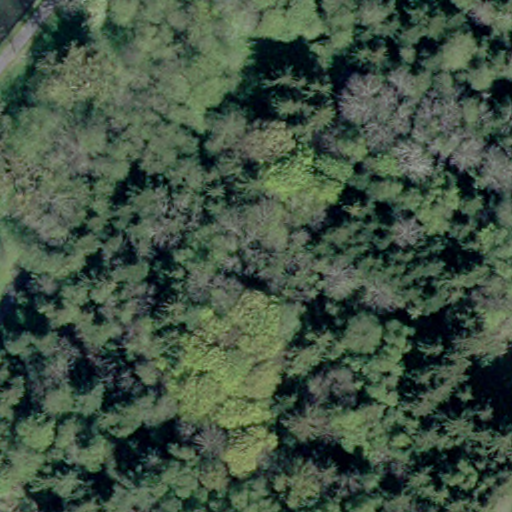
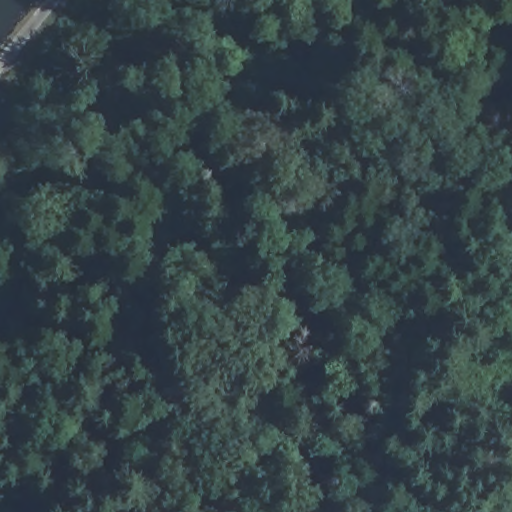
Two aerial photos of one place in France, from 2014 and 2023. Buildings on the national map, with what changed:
[]

